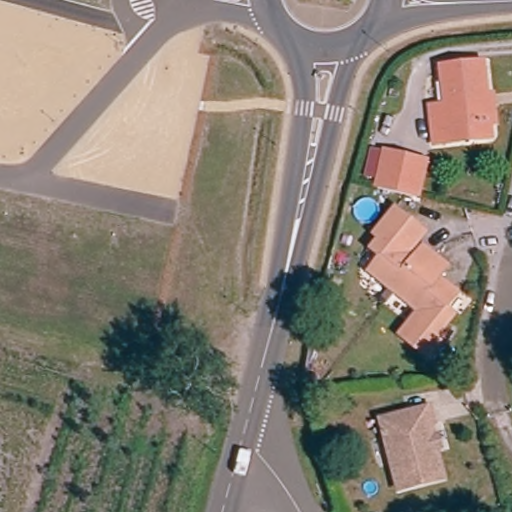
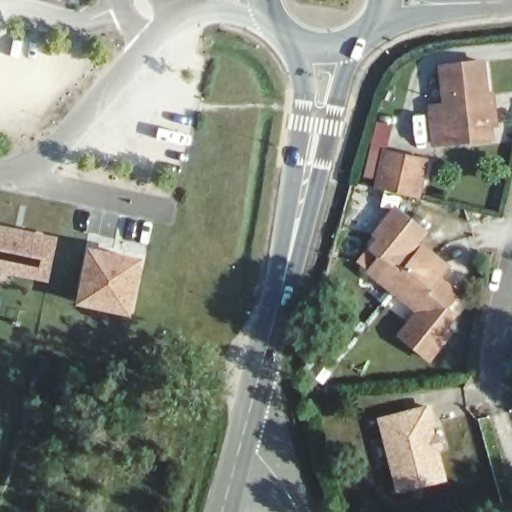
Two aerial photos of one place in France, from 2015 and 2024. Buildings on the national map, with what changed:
unchanged [(499,123),(485,124),(486,140),(440,143),(437,108),(446,105),(442,66),(482,64),(484,96),(500,96),(499,123)]
unchanged [(383,149),(428,161),(421,194),(373,182),(383,149)]
unchanged [(398,340),(421,315),(375,272),(388,258),(378,249),(387,238),(383,234),(406,210),(435,235),(413,260),(418,265),(430,251),(455,272),(443,284),(460,300),(447,315),(455,322),(444,335),(451,341),(427,365),(398,340)]
new [(51,280),(0,270),(0,224),(59,235),(51,280)]
new [(145,257),(133,316),(76,304),(87,245),(145,257)]
unchanged [(388,502),(371,427),(428,412),(432,429),(436,450),(427,455),(435,488),(388,502)]

